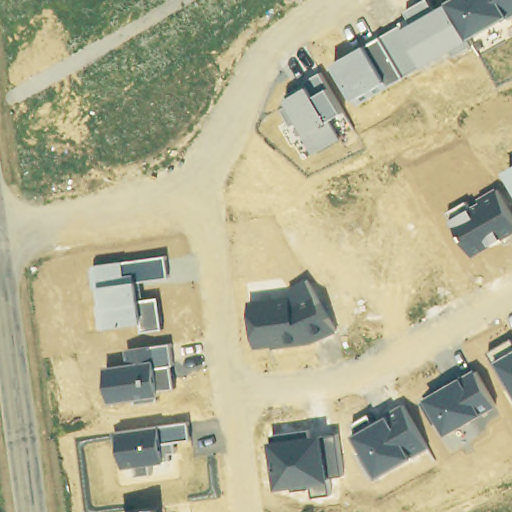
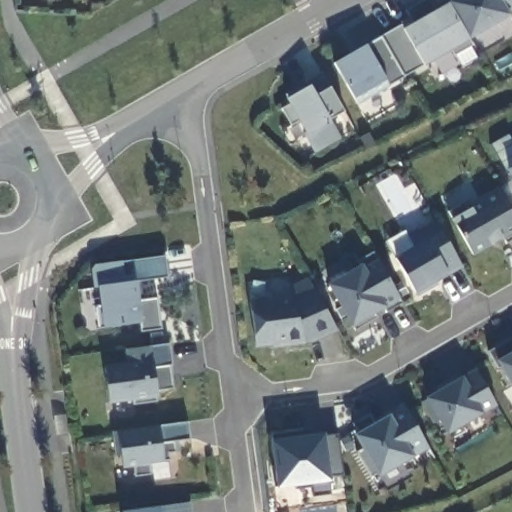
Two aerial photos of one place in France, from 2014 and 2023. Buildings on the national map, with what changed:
unchanged [(376,40),(394,31),(408,21),(405,13),(428,0),(429,0),(433,10),(446,5),(454,0),(512,0),(512,17),(507,20),(425,66),(405,76),(354,105),(333,65),(363,47),(376,40)]
unchanged [(298,121),(288,125),(281,111),(290,106),(285,99),(304,90),(302,83),(320,73),(328,90),(341,114),(327,124),(339,141),(316,155),(298,121)]
unchanged [(512,168),(512,180),(506,171),(512,168)]
unchanged [(467,201),(472,206),(498,189),(512,215),(512,241),(504,246),(501,240),(473,258),(446,214),(467,201)]
new [(415,248),(410,237),(437,222),(442,232),(461,265),(447,274),(410,293),(395,260),(415,248)]
new [(361,267),(357,261),(374,253),(378,262),(402,304),(353,332),(351,328),(327,286),(361,267)]
unchanged [(94,308),(99,307),(96,288),(91,289),(90,273),(91,266),(164,258),(166,279),(136,283),(140,302),(157,300),(160,331),(140,334),(139,325),(97,331),(94,308)]
unchanged [(291,298),(287,290),(305,280),(336,333),(312,343),(255,350),(250,302),(291,298)]
unchanged [(512,343),(512,390),(500,368),(496,370),(487,353),(510,340),(512,343)]
unchanged [(105,368),(129,364),(127,352),(167,346),(170,367),(166,368),(170,390),(156,392),(157,398),(151,399),(152,404),(134,406),(132,401),(109,404),(105,368)]
unchanged [(425,401),(473,370),(495,408),(447,436),(438,421),(431,425),(420,406),(425,401)]
unchanged [(355,454),(361,450),(350,428),(367,416),(372,425),(404,406),(425,450),(412,459),(377,480),(374,476),(370,478),(355,454)]
unchanged [(186,424),(188,441),(171,443),(172,452),(167,452),(169,462),(146,465),(147,475),(134,477),(132,467),(122,468),(120,456),(115,457),(111,433),(186,424)]
unchanged [(307,431),(307,436),(334,434),(341,477),(331,478),(332,482),(326,483),(327,496),(310,498),(309,487),(295,489),(295,486),(275,489),(270,437),(307,431)]
unchanged [(157,509),(158,512),(136,512),(157,509)]

